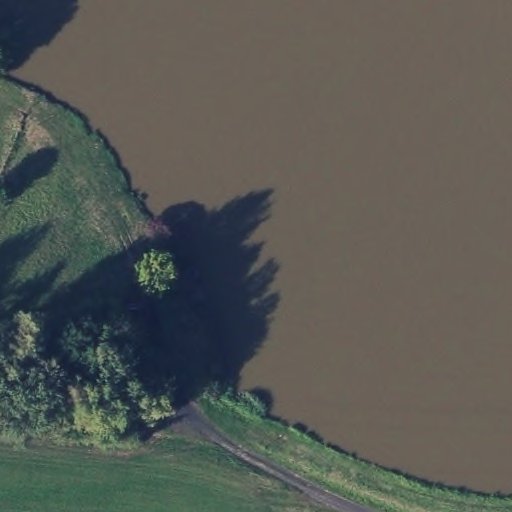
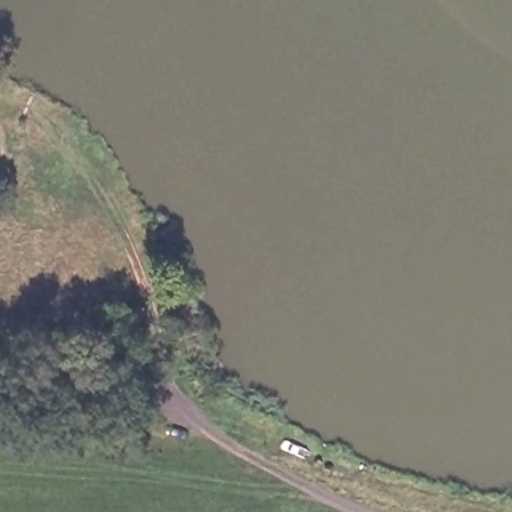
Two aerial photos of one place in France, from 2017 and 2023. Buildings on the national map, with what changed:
unchanged [(125,300),(146,300),(146,347),(120,345),(125,300)]

